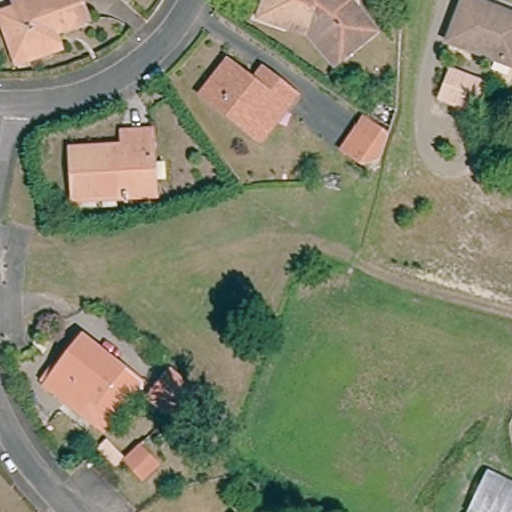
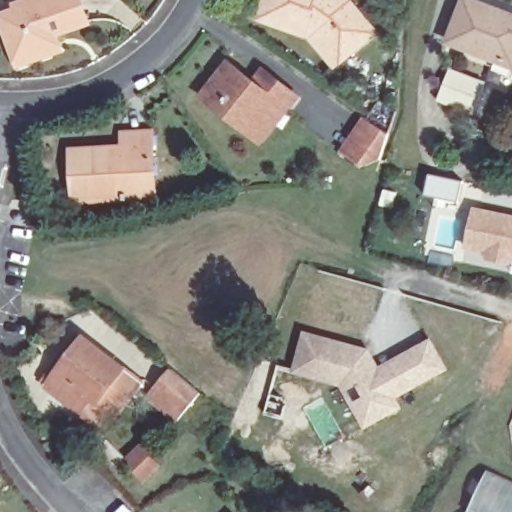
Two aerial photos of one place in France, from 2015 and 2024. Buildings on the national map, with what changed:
unchanged [(9,57),(0,30),(0,11),(9,7),(8,3),(17,0),(31,0),(77,0),(84,21),(50,34),(56,50),(12,65),(9,57)]
unchanged [(353,0),(375,25),(333,59),(309,29),(258,10),(262,0),(353,0)]
unchanged [(512,56),(508,65),(443,38),(458,0),(473,0),(512,16),(512,56)]
unchanged [(222,65),(247,84),(257,72),(293,99),(256,146),(194,99),(222,65)]
unchanged [(446,67),(479,80),(468,111),(435,97),(446,67)]
unchanged [(336,153),(358,119),(383,135),(375,165),(359,171),(336,153)]
unchanged [(118,150),(118,137),(147,136),(150,199),(68,204),(65,154),(118,150)]
new [(512,216),(512,259),(508,262),(490,258),(485,251),(466,247),(474,208),(512,216)]
unchanged [(30,373),(68,325),(109,357),(125,370),(106,393),(87,418),(77,411),(50,390),(30,373)]
new [(397,397),(402,408),(363,428),(339,385),(291,373),(303,331),(371,349),(378,366),(431,338),(448,370),(397,397)]
unchanged [(190,392),(172,412),(167,418),(139,395),(162,367),(190,392)]
unchanged [(148,453),(157,463),(152,467),(151,466),(140,476),(134,470),(125,460),(140,446),(148,453)]
unchanged [(492,472),(512,482),(512,512),(473,512),(492,472)]

